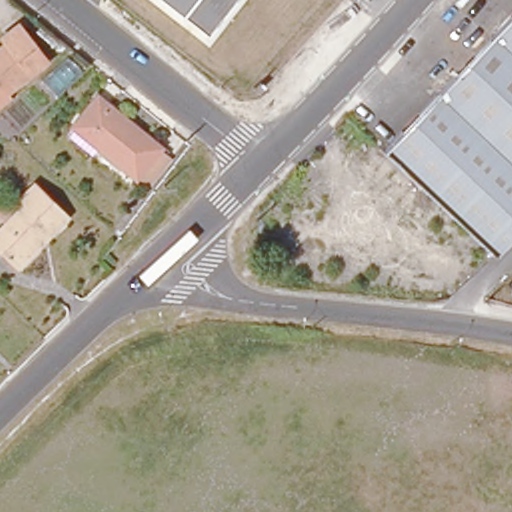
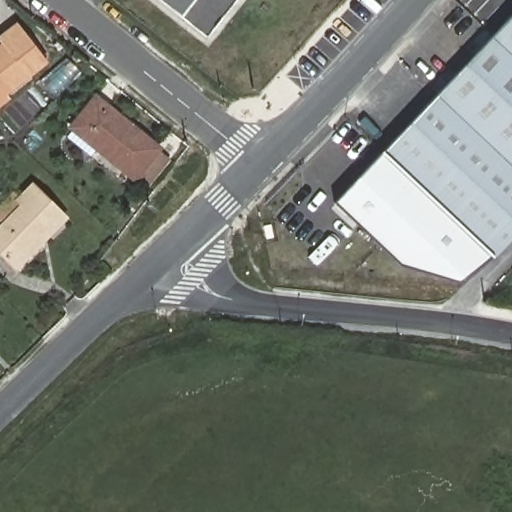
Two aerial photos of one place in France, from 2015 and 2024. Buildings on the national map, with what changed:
unchanged [(182,15),(163,0),(236,0),(209,35),(182,15)]
unchanged [(512,14),(512,161),(438,93),(512,14)]
unchanged [(1,49),(17,36),(45,72),(0,107),(0,57),(5,54),(1,49)]
unchanged [(512,239),(497,255),(382,152),(438,93),(512,161),(512,239)]
unchanged [(142,188),(130,178),(69,127),(91,98),(154,148),(153,150),(165,159),(142,188)]
new [(497,255),(459,282),(400,265),(335,203),(382,152),(497,255)]
unchanged [(5,227),(0,222),(0,212),(12,200),(17,205),(32,191),(65,223),(17,273),(0,256),(0,233),(5,227)]

